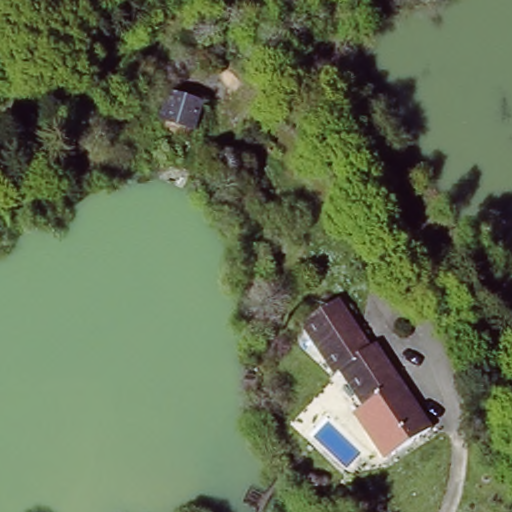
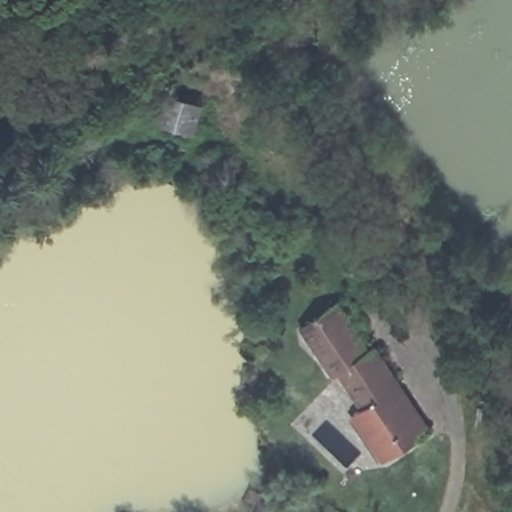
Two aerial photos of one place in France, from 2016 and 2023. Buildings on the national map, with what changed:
unchanged [(203,100),(194,134),(158,124),(166,91),(203,100)]
unchanged [(352,416),(357,410),(338,377),(330,381),(298,325),(340,301),(367,344),(375,342),(435,433),(382,464),(352,416)]

